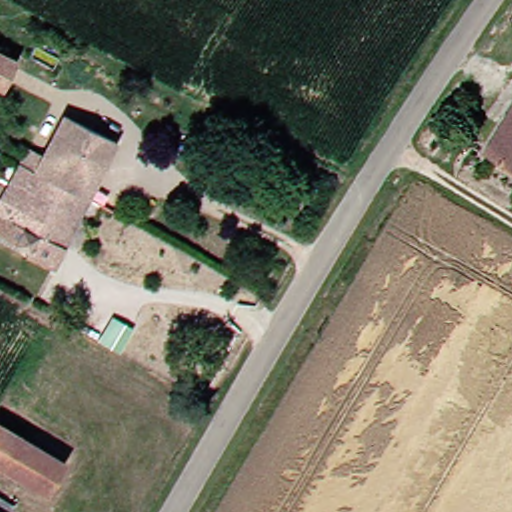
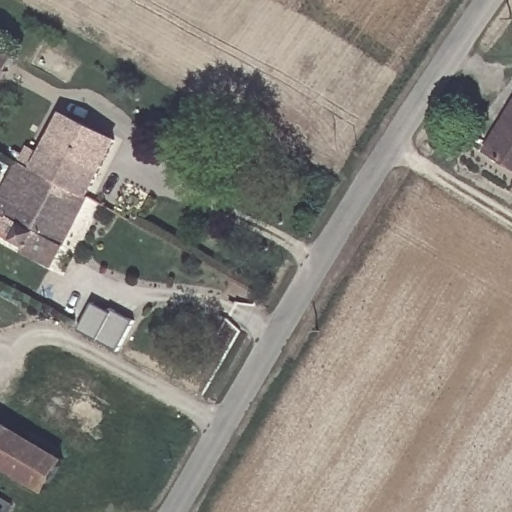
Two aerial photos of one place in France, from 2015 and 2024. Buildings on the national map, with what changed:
unchanged [(0,91),(0,61),(17,71),(4,93),(0,91)]
unchanged [(505,111),(512,99),(512,168),(490,153),(482,148),(505,111)]
unchanged [(31,169),(26,176),(16,169),(26,151),(38,157),(62,114),(107,135),(79,196),(31,169)]
unchanged [(0,236),(0,214),(2,215),(16,195),(4,188),(16,169),(26,176),(31,169),(79,196),(47,265),(0,236)]
new [(96,300),(135,320),(119,350),(80,330),(96,300)]
unchanged [(40,493),(0,470),(0,426),(59,460),(40,493)]

